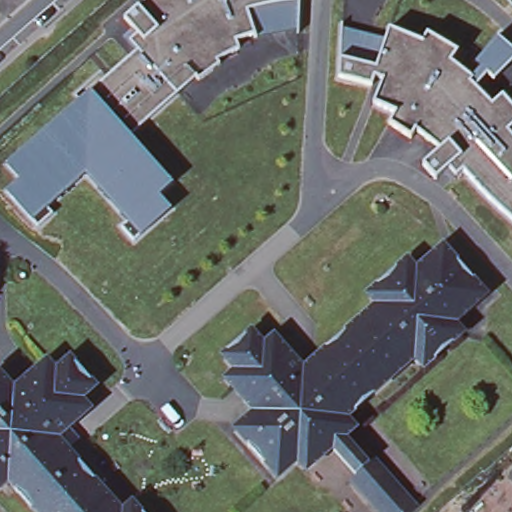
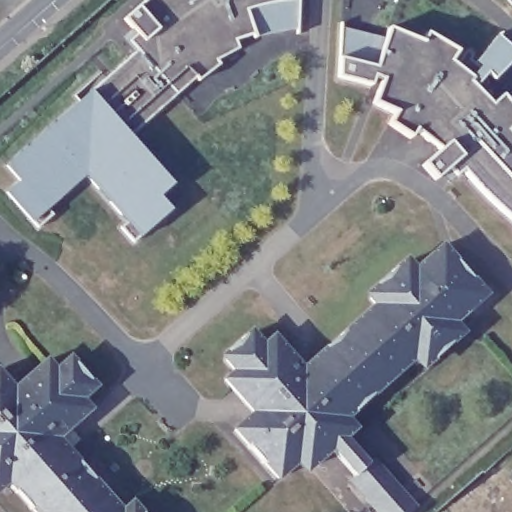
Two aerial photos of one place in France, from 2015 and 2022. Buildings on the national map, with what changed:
unchanged [(138,49),(128,39),(135,31),(125,18),(144,0),(300,0),(300,25),(239,38),(240,47),(215,58),(218,63),(200,80),(194,75),(127,132),(174,185),(162,196),(171,206),(142,233),(86,171),(33,216),(9,191),(20,182),(6,164),(91,88),(138,49)]
unchanged [(387,27),(424,41),(429,34),(457,49),(453,59),(472,72),(481,64),(474,57),(497,32),(512,46),(512,62),(495,80),(488,72),(475,87),(494,104),(506,92),(512,99),(512,123),(509,127),(512,131),(512,217),(506,212),(477,183),(458,161),(436,179),(422,165),(444,143),(418,131),(413,137),(390,122),(394,112),(374,102),(381,82),(342,72),(343,59),(341,23),(384,35),(387,27)]
unchanged [(417,507),(410,512),(379,512),(350,479),(354,475),(332,447),(310,466),(303,466),(297,460),(278,477),(235,428),(255,412),(226,378),(236,370),(227,360),(227,352),(247,334),(255,335),(264,344),(274,335),(303,368),(376,303),(371,297),(371,290),(403,262),(411,262),(415,267),(443,244),(486,293),(453,320),(459,327),(459,335),(427,362),(419,362),(415,357),(346,417),(351,423),(351,431),(345,436),(369,463),(374,457),(417,507)]
unchanged [(14,388),(47,359),(56,369),(66,361),(74,361),(92,381),(91,389),(81,398),(90,408),(57,437),(122,511),(128,505),(136,506),(141,512),(36,512),(8,481),(0,487),(0,373),(14,388)]
unchanged [(512,473),(512,490),(504,482),(512,473)]

